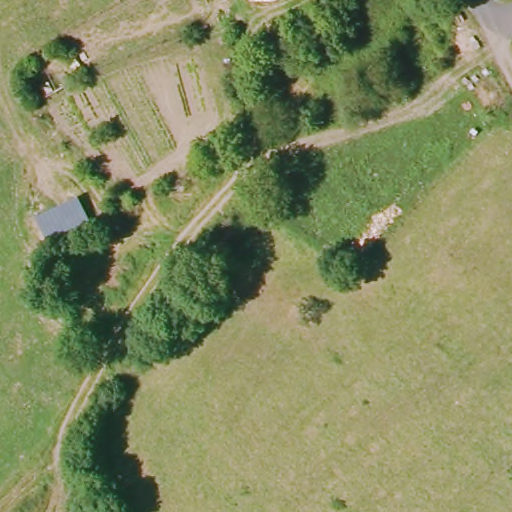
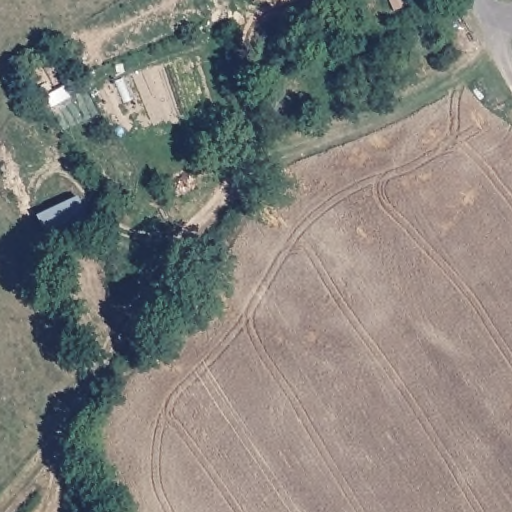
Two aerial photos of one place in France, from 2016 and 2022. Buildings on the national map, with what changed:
unchanged [(254,0),(253,0),(281,0),(262,4),(254,0)]
unchanged [(90,225),(48,245),(36,217),(78,196),(90,225)]

